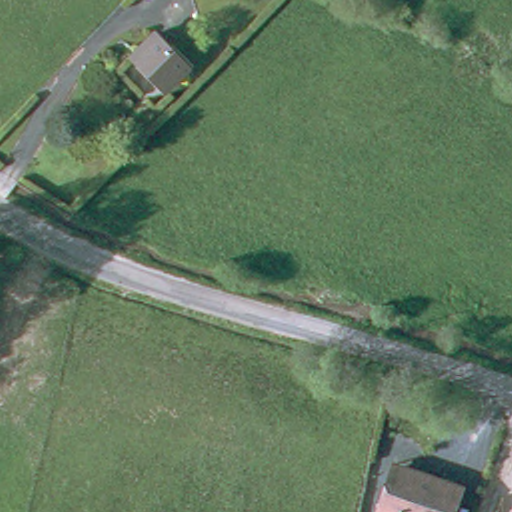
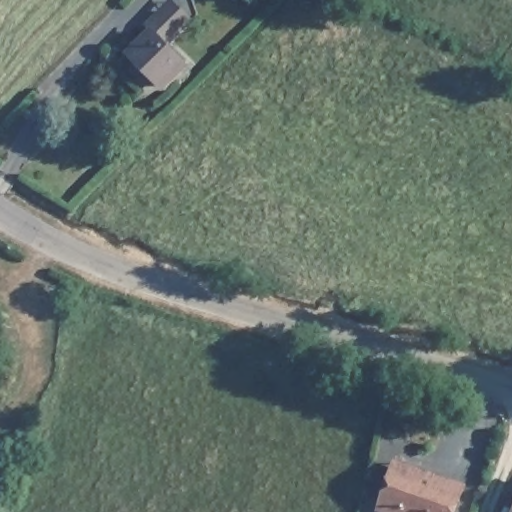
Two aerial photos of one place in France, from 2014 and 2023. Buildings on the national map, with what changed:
unchanged [(128,58),(149,36),(181,68),(160,89),(128,58)]
unchanged [(457,512),(380,512),(394,473),(396,468),(441,485),(464,493),(457,512)]

